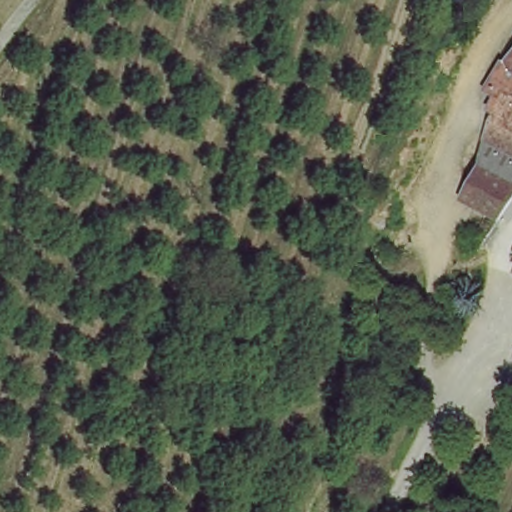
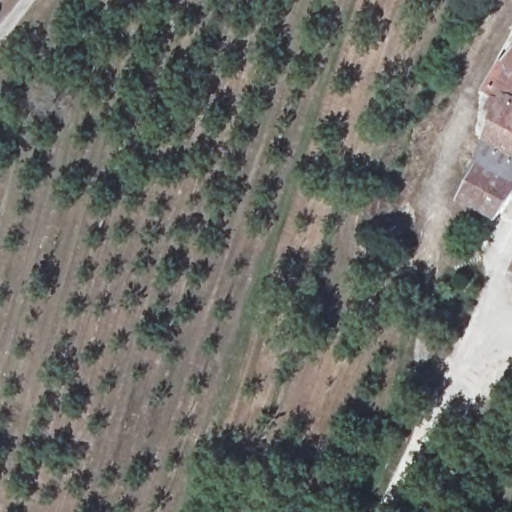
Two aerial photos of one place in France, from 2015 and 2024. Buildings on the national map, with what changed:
unchanged [(503,105),(491,99),(512,68),(512,110),(503,105)]
unchanged [(491,148),(501,130),(498,128),(493,125),(503,105),(512,110),(512,160),(491,148)]
unchanged [(469,200),(485,172),(512,187),(512,221),(509,226),(468,202),(469,200)]

